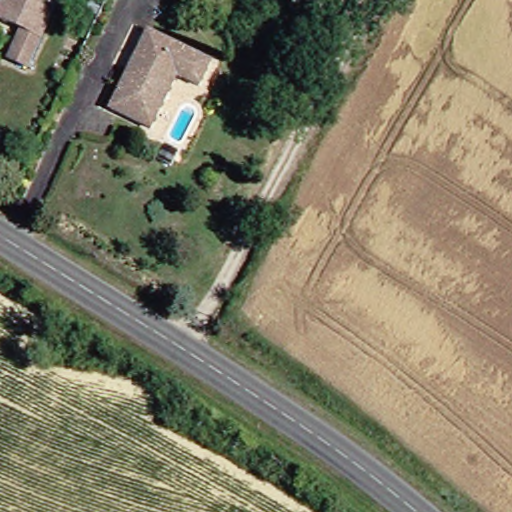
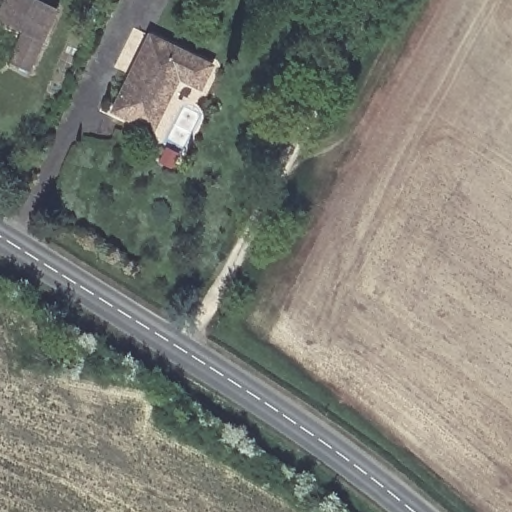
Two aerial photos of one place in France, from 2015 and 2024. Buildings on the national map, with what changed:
unchanged [(52,12),(25,66),(6,55),(20,26),(0,16),(0,1),(1,0),(42,0),(55,7),(52,12)]
unchanged [(160,39),(222,69),(209,94),(190,83),(181,98),(142,74),(160,39)]
unchanged [(181,98),(162,134),(122,112),(142,74),(181,98)]

